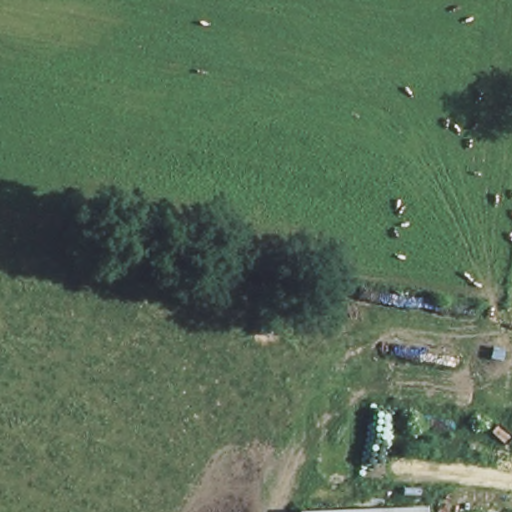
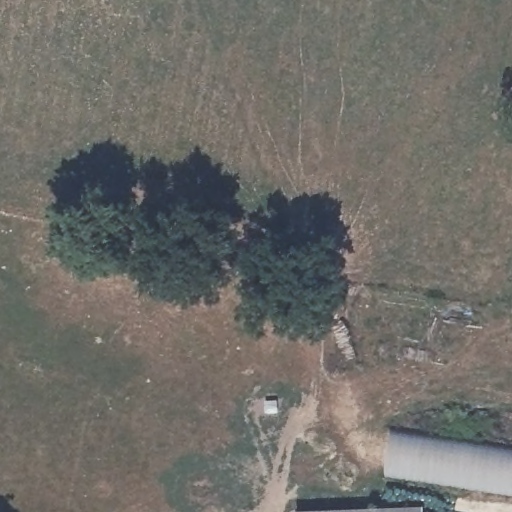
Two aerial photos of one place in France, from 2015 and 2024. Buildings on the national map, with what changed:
new [(385,473),(392,432),(512,450),(512,494),(385,473)]
unchanged [(424,510),(424,512),(364,512),(424,510)]

